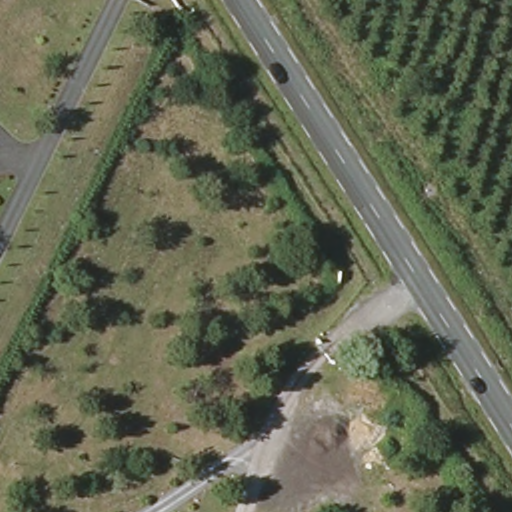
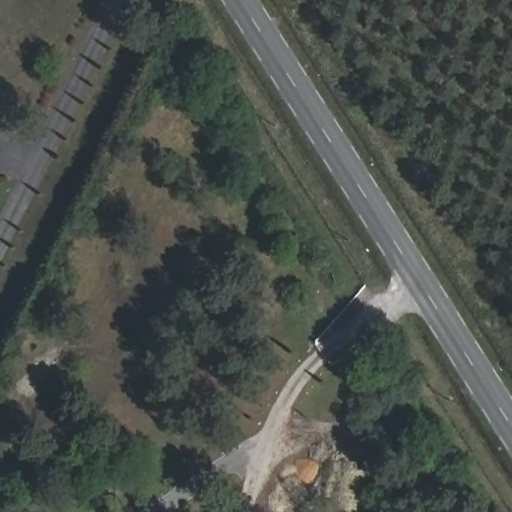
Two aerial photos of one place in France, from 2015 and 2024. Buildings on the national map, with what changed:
[]

